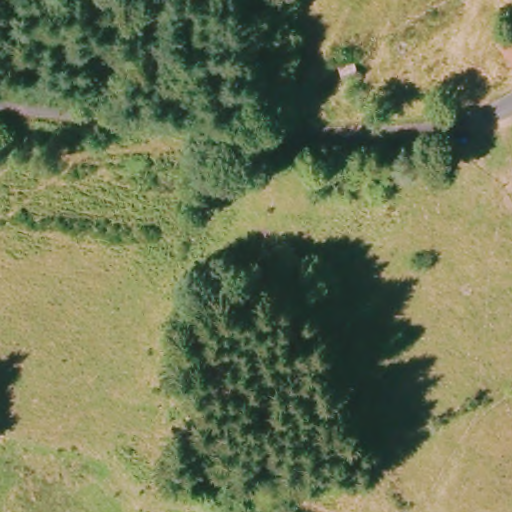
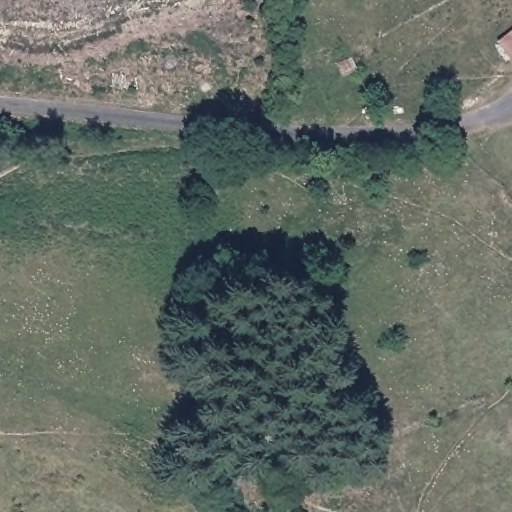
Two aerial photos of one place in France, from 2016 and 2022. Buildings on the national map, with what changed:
unchanged [(512,30),(512,61),(496,46),(512,30)]

